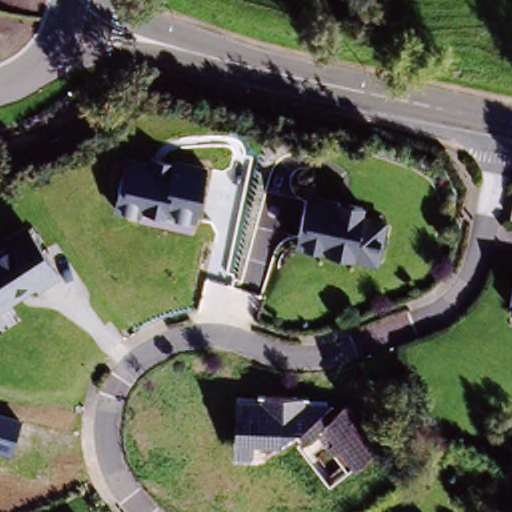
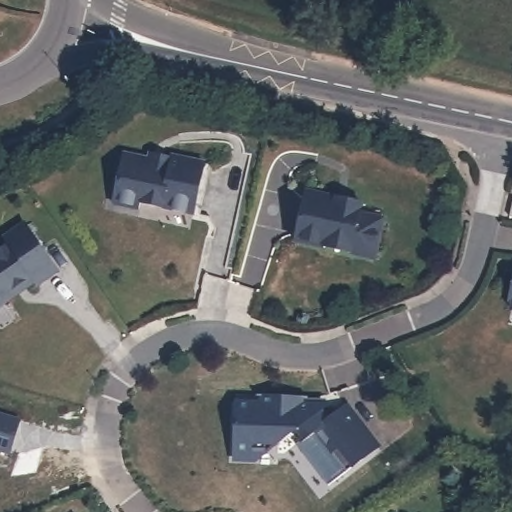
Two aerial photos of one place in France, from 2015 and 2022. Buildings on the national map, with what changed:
unchanged [(149,161),(150,153),(172,157),(170,160),(205,167),(197,217),(165,211),(165,208),(142,204),(140,215),(112,211),(121,155),(149,161)]
unchanged [(365,202),(362,217),(387,221),(376,264),(348,258),(349,253),(325,248),(322,252),(295,246),(305,192),(365,202)]
unchanged [(12,252),(5,244),(30,227),(61,273),(0,314),(0,261),(12,252)]
unchanged [(318,413),(325,422),(343,408),(375,450),(327,488),(295,447),(302,441),(295,432),(277,446),(263,446),(263,457),(262,466),(232,465),(234,403),(262,404),(262,396),(292,398),(292,406),(325,408),(318,413)]
unchanged [(18,423),(10,457),(0,454),(0,418),(18,423)]

